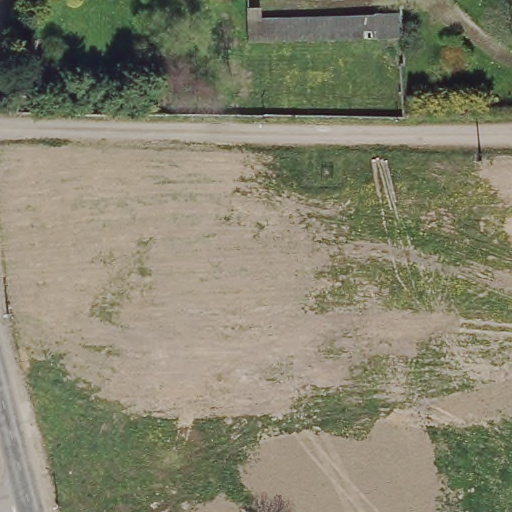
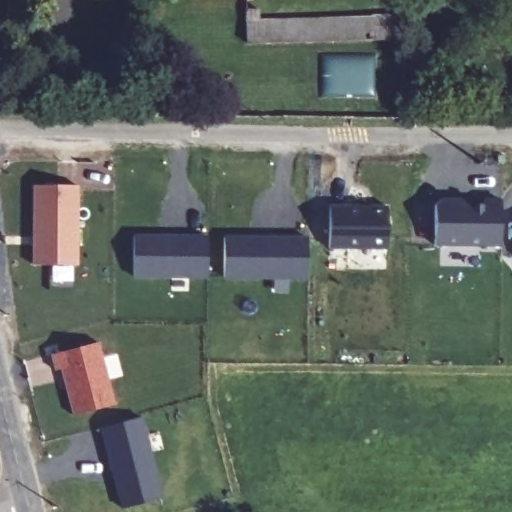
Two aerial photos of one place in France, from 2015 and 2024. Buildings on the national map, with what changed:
unchanged [(391,11),(409,11),(410,45),(391,45),(242,49),(242,17),(348,13),(391,11)]
new [(35,184),(78,184),(78,264),(34,263),(35,184)]
new [(434,245),(435,206),(442,196),(501,199),(500,247),(434,245)]
new [(329,249),(329,205),(387,206),(387,250),(329,249)]
new [(206,279),(134,277),(134,234),(206,235),(206,279)]
new [(307,281),(224,279),(223,235),(307,237),(307,281)]
new [(60,370),(54,371),(50,354),(99,341),(116,404),(72,415),(60,370)]
new [(100,428),(141,418),(162,498),(122,508),(100,428)]

